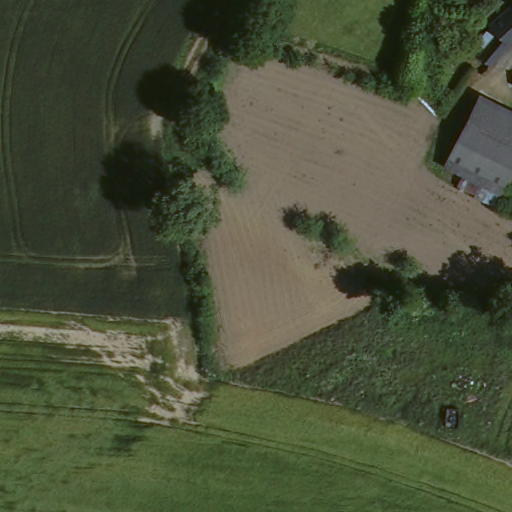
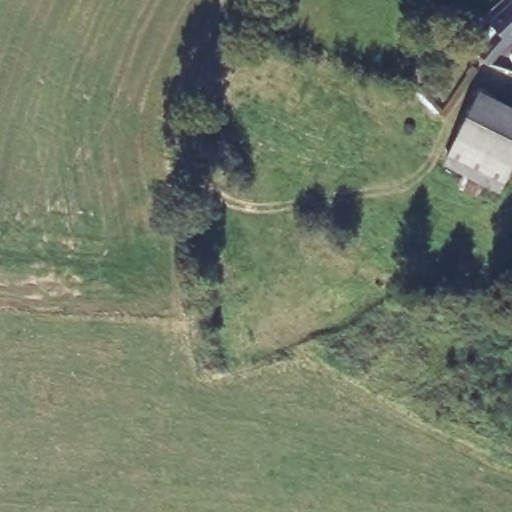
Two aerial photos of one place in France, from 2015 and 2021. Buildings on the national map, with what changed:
unchanged [(489,70),(478,59),(499,39),(487,26),(511,5),(506,0),(512,0),(512,49),(489,70)]
unchanged [(434,41),(433,28),(455,27),(456,41),(434,41)]
unchanged [(442,166),(469,99),(512,118),(512,154),(496,190),(442,166)]

